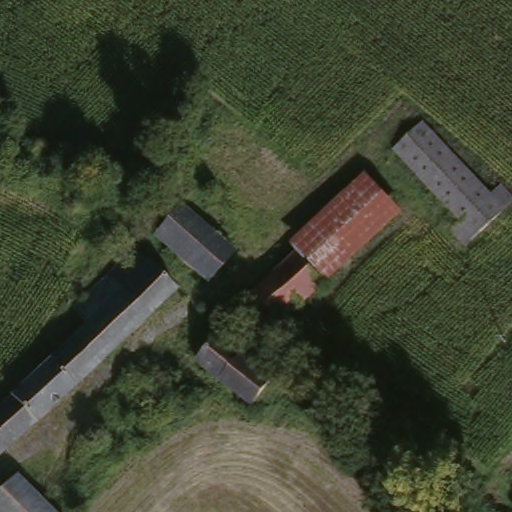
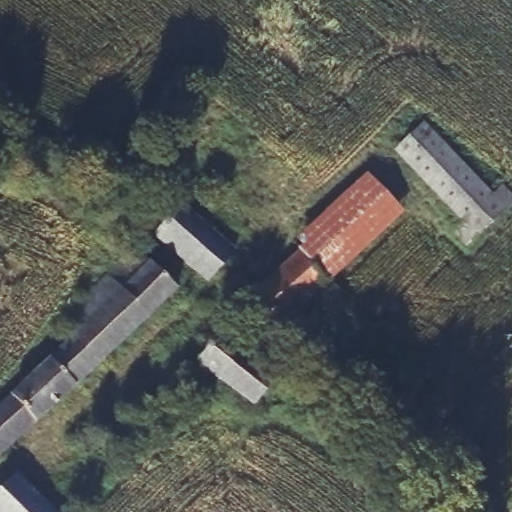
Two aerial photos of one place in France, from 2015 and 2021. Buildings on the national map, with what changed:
unchanged [(419,128),(489,197),(498,189),(512,203),(461,251),(448,238),(459,228),(388,156),(419,128)]
unchanged [(359,183),(394,219),(322,286),(287,250),(359,183)]
unchanged [(178,205),(232,251),(204,281),(151,237),(178,205)]
unchanged [(76,330),(61,314),(123,255),(168,295),(0,451),(0,404),(76,330)]
unchanged [(291,262),(318,290),(271,336),(242,308),(291,262)]
unchanged [(274,382),(250,410),(194,365),(195,363),(189,357),(203,341),(210,346),(218,336),(274,382)]
unchanged [(10,477),(48,512),(0,512),(0,487),(10,477)]

